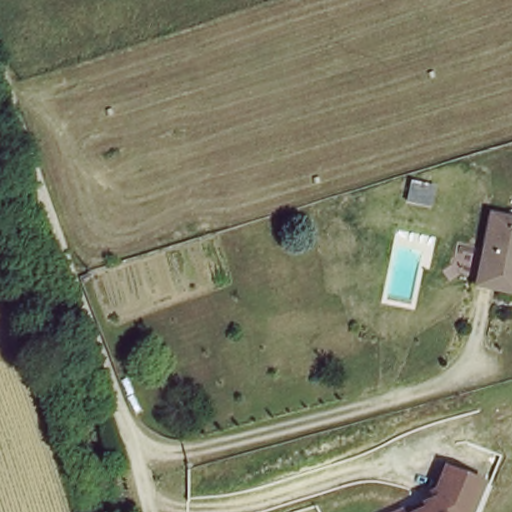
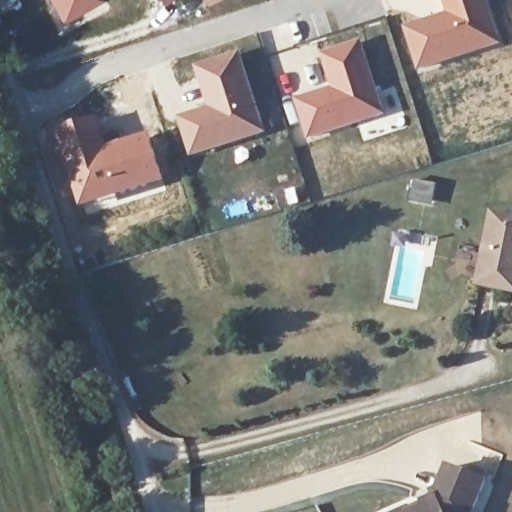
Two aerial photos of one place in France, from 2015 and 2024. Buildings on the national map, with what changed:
new [(48,0),(101,0),(61,22),(48,0)]
new [(156,0),(166,0),(159,4),(156,0)]
new [(199,0),(211,0),(203,5),(199,0)]
new [(441,0),(490,0),(503,44),(417,71),(402,26),(444,9),(441,0)]
new [(330,84),(320,53),(362,39),(387,115),(308,141),(293,98),(330,84)]
new [(207,105),(194,66),(242,51),(267,133),(191,159),(177,116),(207,105)]
new [(100,119),(110,146),(151,134),(167,184),(82,210),(53,134),(100,119)]
new [(412,178),(438,184),(432,207),(407,200),(412,178)]
unchanged [(505,288),(473,279),(490,208),(512,214),(512,290),(505,288)]
unchanged [(432,494),(444,463),(482,477),(467,512),(393,512),(408,505),(408,507),(422,500),(433,495),(432,494)]

